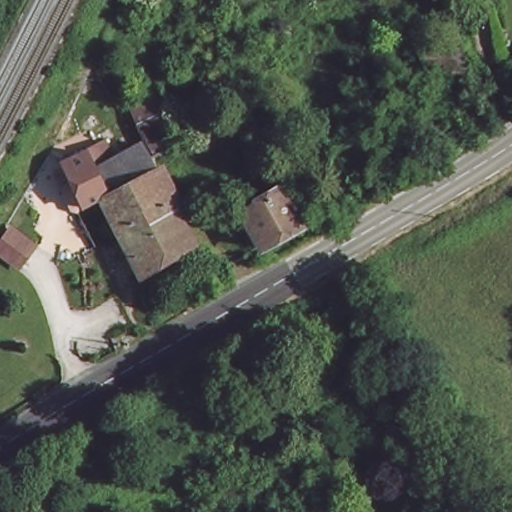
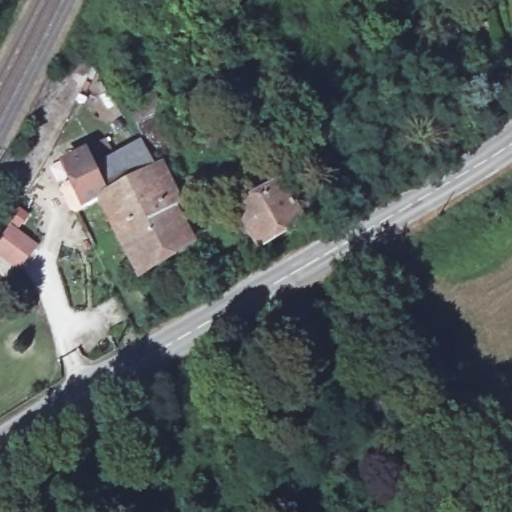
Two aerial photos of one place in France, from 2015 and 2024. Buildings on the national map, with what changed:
unchanged [(152,153),(136,124),(127,110),(152,96),(160,110),(176,140),(152,153)]
unchanged [(153,170),(190,245),(142,274),(98,201),(85,209),(61,164),(81,153),(100,144),(109,161),(139,146),(153,170)]
unchanged [(290,183),(299,196),(292,201),(301,219),(259,244),(238,209),(281,182),(285,186),(290,183)]
unchanged [(4,251),(18,231),(41,248),(26,268),(4,251)]

